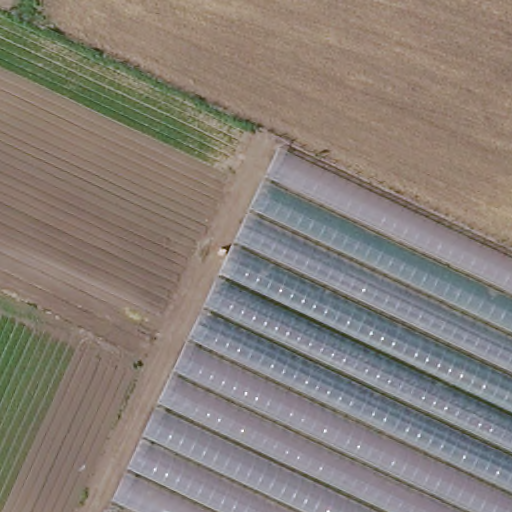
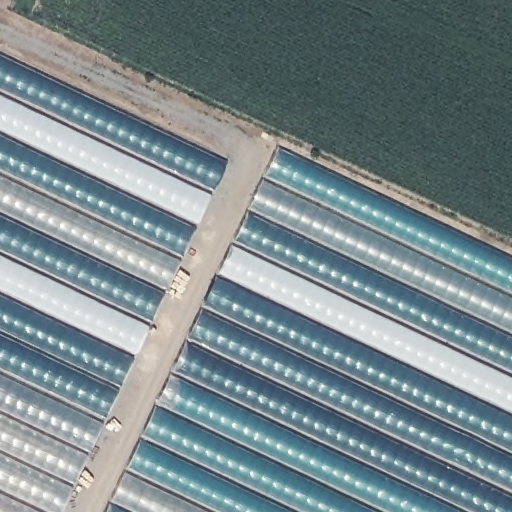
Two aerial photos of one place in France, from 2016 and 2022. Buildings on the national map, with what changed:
new [(0,56),(229,165),(139,356),(0,291),(0,56)]
unchanged [(279,149),(512,259),(512,512),(106,512),(279,149)]

